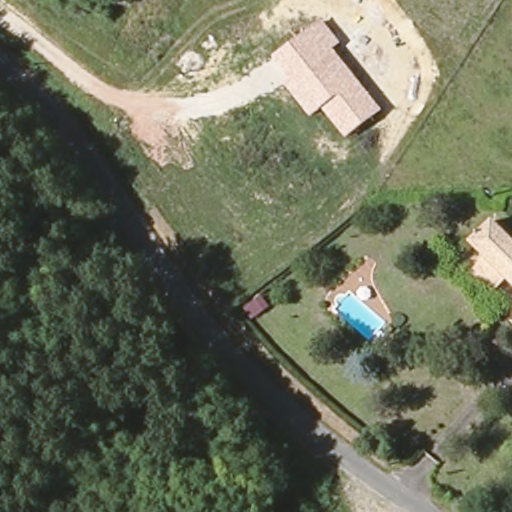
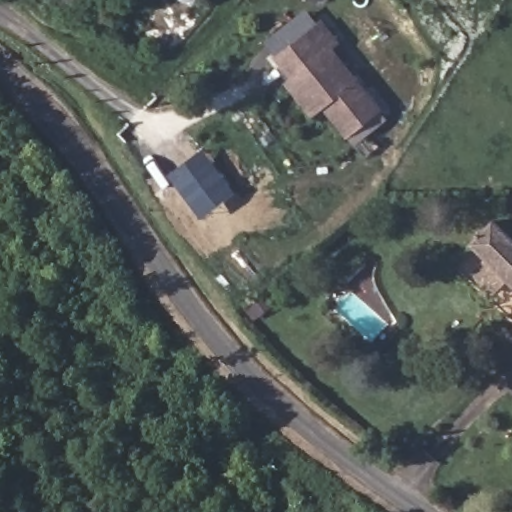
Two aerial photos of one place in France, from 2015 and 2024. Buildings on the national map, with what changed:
unchanged [(382,111),(346,139),(323,108),(310,118),(285,83),(290,79),(274,57),(322,20),(341,44),(333,49),(382,111)]
new [(169,173),(205,148),(235,192),(200,217),(169,173)]
unchanged [(472,246),(496,223),(512,241),(512,251),(493,269),(472,246)]
unchanged [(512,251),(512,290),(493,269),(512,251)]

